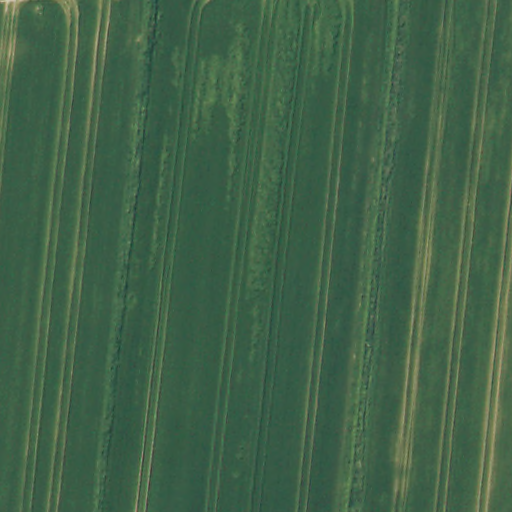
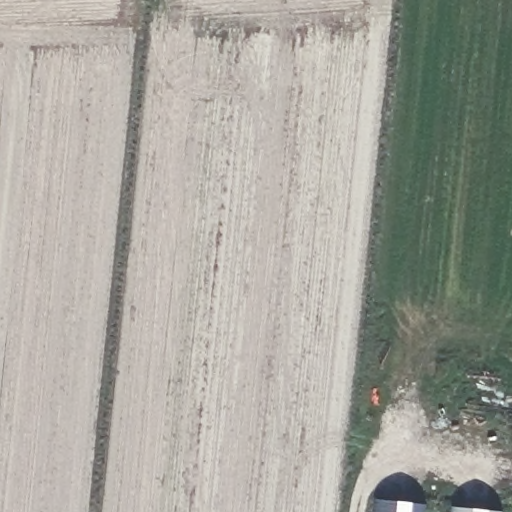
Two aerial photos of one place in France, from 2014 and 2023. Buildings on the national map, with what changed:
new [(426,503),(425,512),(372,512),(373,499),(426,503)]
new [(449,506),(502,511),(502,512),(448,512),(449,506)]

